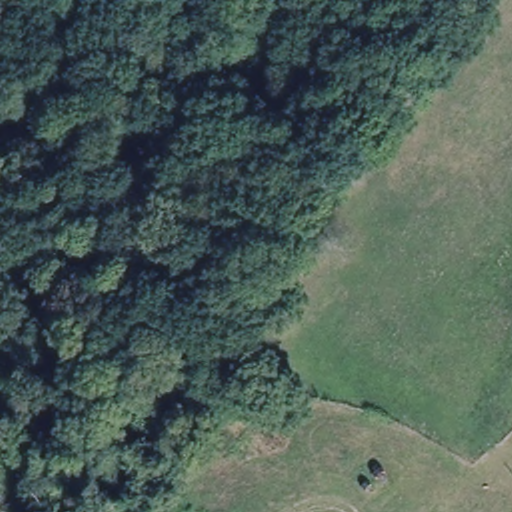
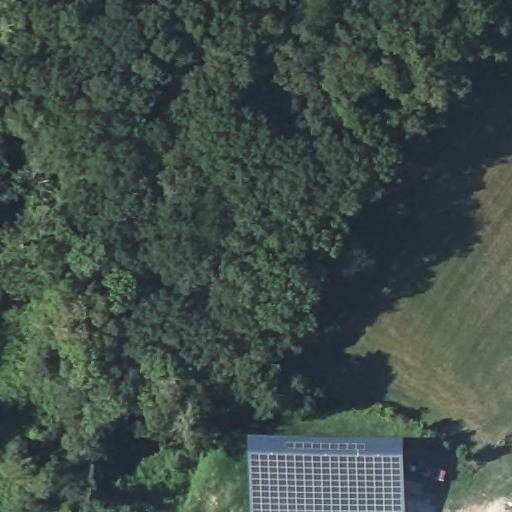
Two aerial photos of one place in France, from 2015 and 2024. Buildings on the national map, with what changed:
new [(254,456),(290,453),(376,451),(378,456),(388,455),(388,452),(409,450),(409,512),(252,512),(251,501),(254,456)]

